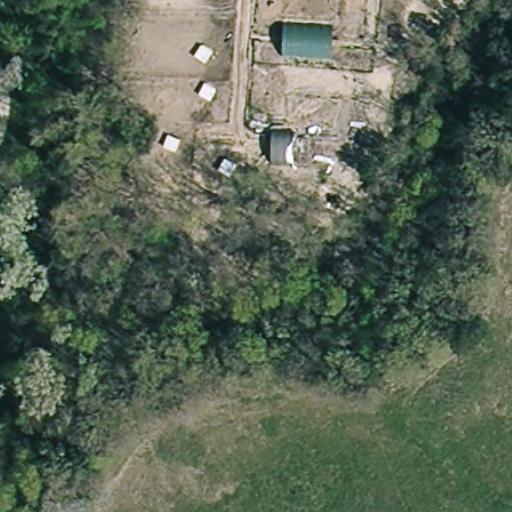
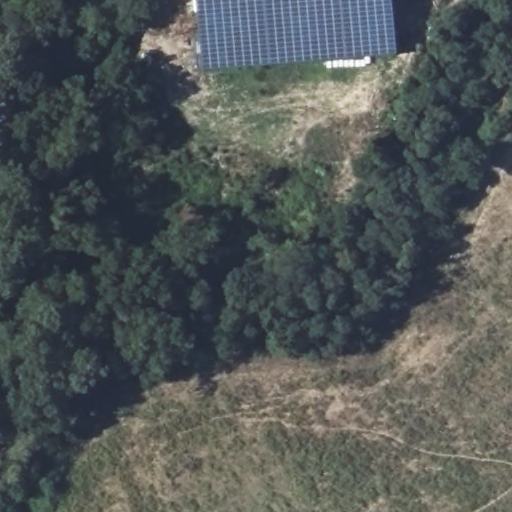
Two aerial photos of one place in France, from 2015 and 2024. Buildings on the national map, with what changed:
new [(393,0),(398,56),(204,72),(198,0),(393,0)]
demolished [(329,130),(328,165),(269,163),(269,129),(329,130)]

